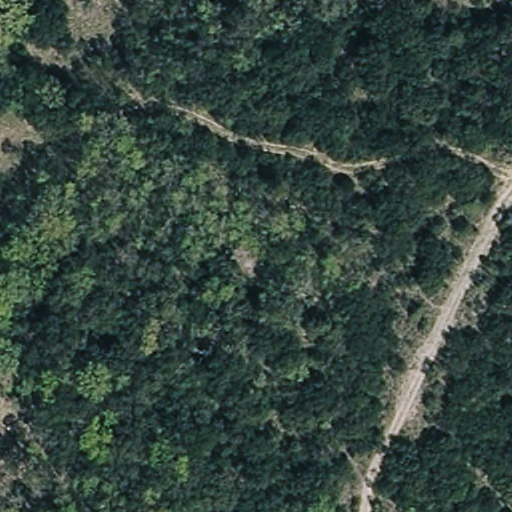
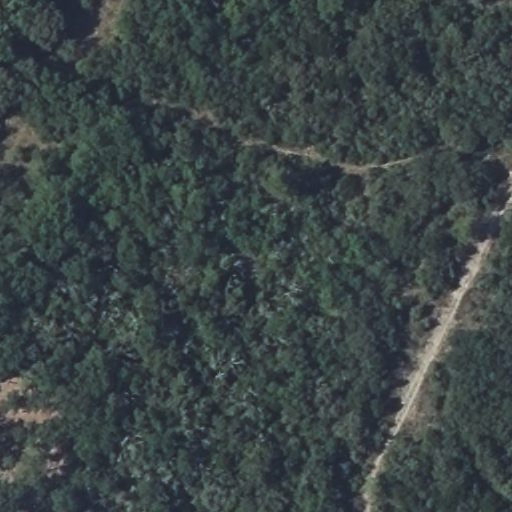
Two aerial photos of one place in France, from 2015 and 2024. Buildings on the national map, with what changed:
[]

